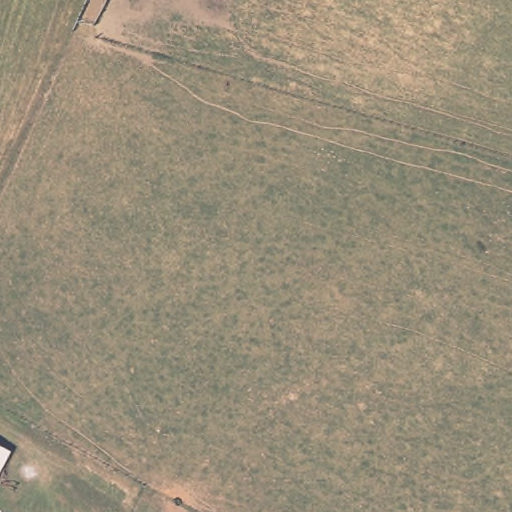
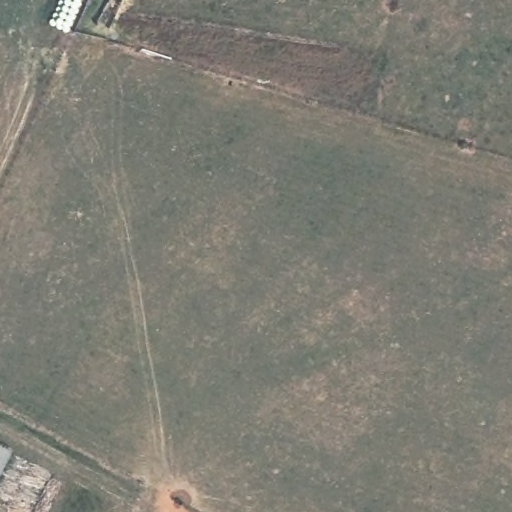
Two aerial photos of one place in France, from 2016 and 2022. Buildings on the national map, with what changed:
unchanged [(0,445),(0,441),(12,448),(0,470),(0,451),(2,445),(0,445)]
unchanged [(0,452),(0,445),(2,445),(0,452)]

